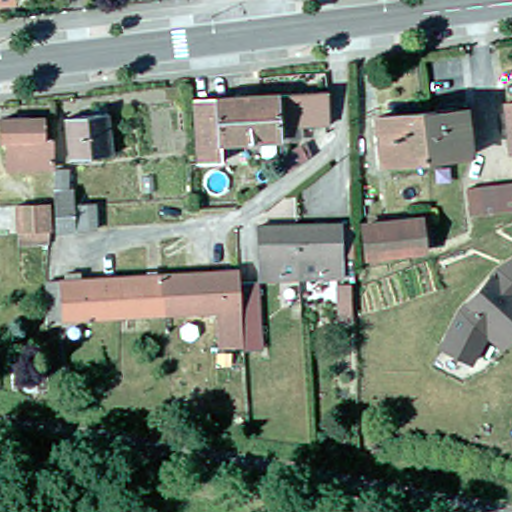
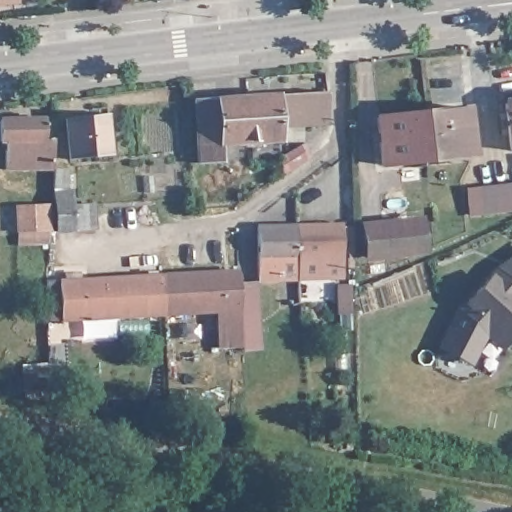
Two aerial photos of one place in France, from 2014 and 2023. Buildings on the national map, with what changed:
unchanged [(322,121),(274,125),(273,91),(320,89),(322,121)]
unchanged [(202,160),(191,161),(190,143),(188,97),(210,96),(273,91),(274,125),(275,138),(246,140),(247,150),(238,151),(238,140),(213,141),(214,159),(202,160)]
unchanged [(508,147),(503,101),(512,100),(512,147),(508,147)]
unchanged [(475,151),(430,156),(425,109),(470,105),(475,151)]
unchanged [(430,156),(385,160),(381,114),(425,109),(430,156)]
unchanged [(106,111),(110,152),(68,156),(64,116),(106,111)]
unchanged [(6,168),(6,141),(0,141),(0,118),(41,117),(42,139),(51,139),(50,168),(6,168)]
unchanged [(308,161),(280,171),(280,155),(302,146),(308,161)]
unchanged [(55,227),(55,202),(55,195),(54,189),(52,188),(53,169),(66,169),(65,189),(71,189),(71,195),(71,201),(71,203),(91,202),(92,225),(55,227)]
unchanged [(476,193),(491,192),(506,190),(512,190),(512,217),(508,217),(493,219),(479,220),(465,221),(462,194),(476,193)]
unchanged [(350,191),(350,213),(337,213),(336,192),(350,191)]
unchanged [(43,205),(44,229),(14,229),(14,205),(43,205)]
unchanged [(362,224),(380,221),(400,219),(418,217),(420,231),(422,246),(402,248),(383,251),(365,253),(363,238),(362,224)]
unchanged [(296,274),(256,274),(255,223),(293,222),(296,274)]
unchanged [(340,273),(296,274),(293,222),(339,222),(340,273)]
unchanged [(502,342),(500,344),(483,341),(468,370),(439,355),(458,318),(480,294),(495,277),(496,276),(512,266),(512,330),(502,342)]
unchanged [(161,311),(158,271),(236,268),(236,280),(247,279),(255,279),(257,310),(257,318),(239,319),(238,314),(238,307),(161,311)]
unchanged [(46,318),(47,277),(58,276),(65,276),(65,270),(78,269),(78,275),(158,271),(161,311),(60,317),(56,317),(56,357),(45,360),(45,359),(46,318)]
unchanged [(348,287),(348,309),(335,310),(335,291),(334,283),(348,283),(348,287)]
unchanged [(18,388),(20,366),(43,361),(41,389),(18,388)]

